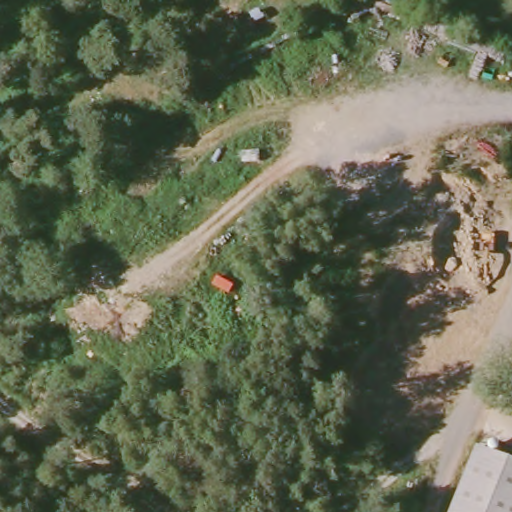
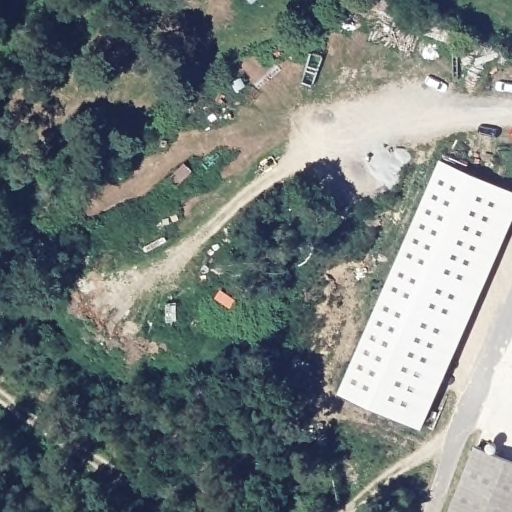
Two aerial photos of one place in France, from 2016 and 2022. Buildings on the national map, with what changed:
new [(341,392),(439,160),(512,190),(512,223),(424,427),(341,392)]
unchanged [(512,461),(512,512),(449,512),(476,446),(512,461)]

